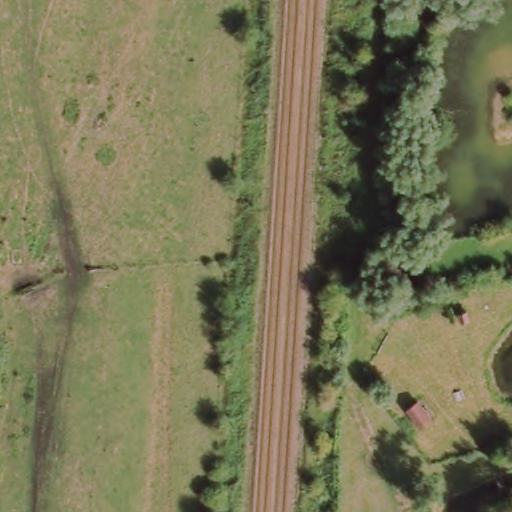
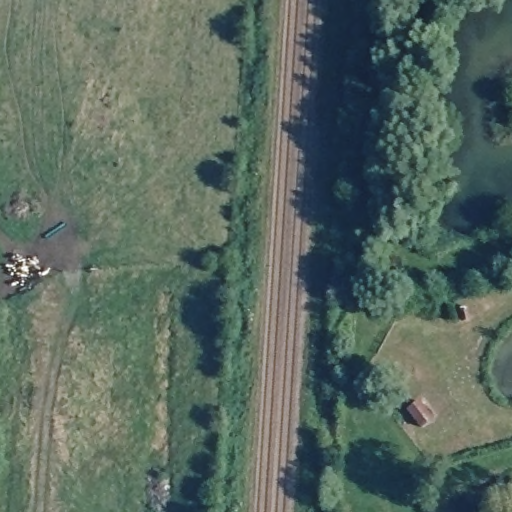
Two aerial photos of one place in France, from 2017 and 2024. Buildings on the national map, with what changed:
unchanged [(430,419),(442,436),(433,442),(422,425),(430,419)]

